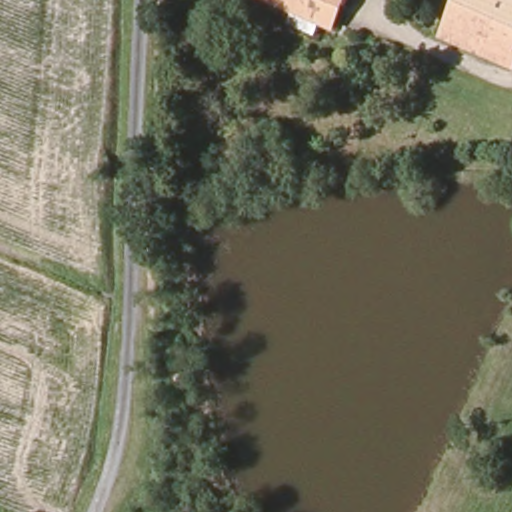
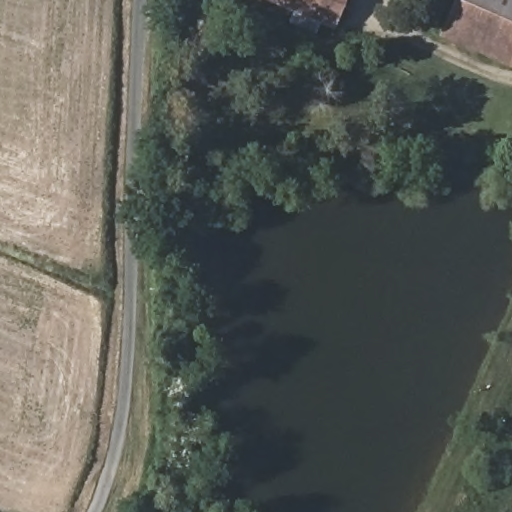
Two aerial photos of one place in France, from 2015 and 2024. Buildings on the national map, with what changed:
unchanged [(272,0),(350,0),(347,6),(338,29),(325,23),(272,0)]
unchanged [(452,31),(466,0),(512,0),(512,58),(452,31)]

